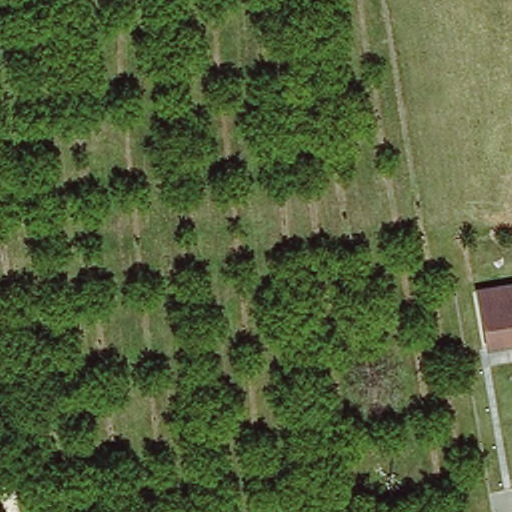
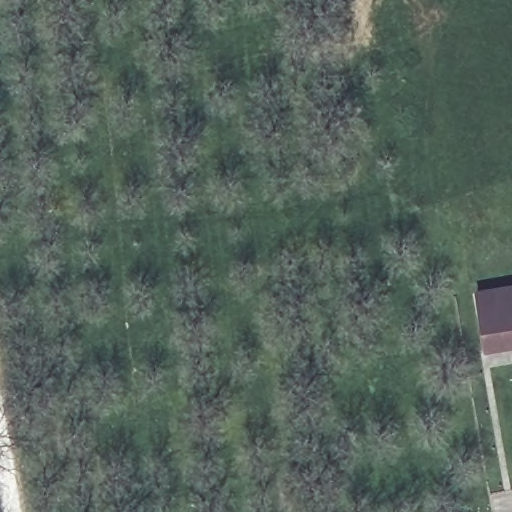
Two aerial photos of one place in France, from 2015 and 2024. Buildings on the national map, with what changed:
unchanged [(482,295),(512,289),(512,336),(492,340),(478,343),(468,298),(482,295)]

